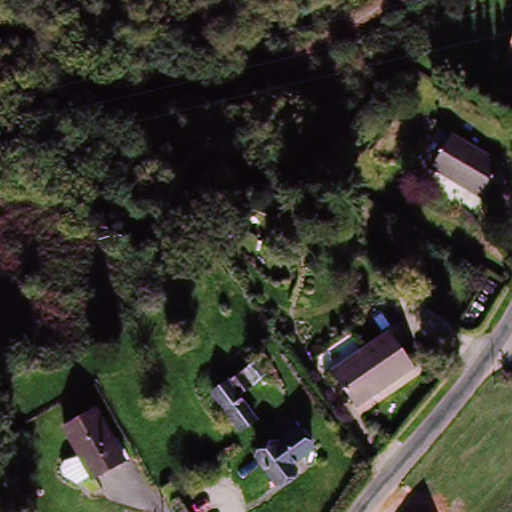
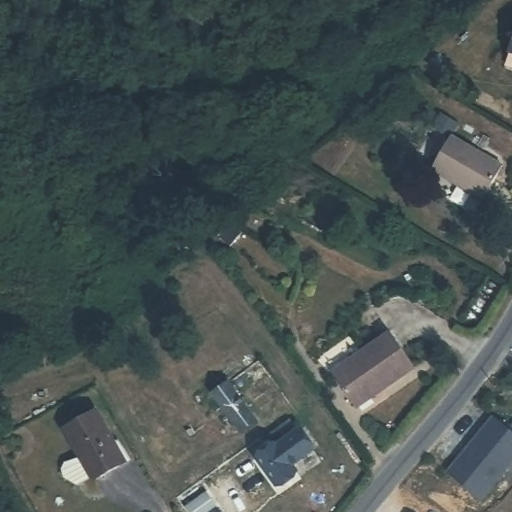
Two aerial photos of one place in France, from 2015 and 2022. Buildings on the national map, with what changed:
unchanged [(507,46),(512,37),(512,50),(507,46)]
unchanged [(500,166),(482,196),(431,164),(449,134),(500,166)]
unchanged [(346,407),(329,380),(391,338),(412,371),(379,393),(350,413),(346,407)]
unchanged [(251,373),(259,385),(244,394),(236,382),(251,373)]
unchanged [(220,394),(244,429),(231,438),(207,403),(220,394)]
unchanged [(100,412),(129,463),(94,482),(93,479),(79,487),(64,481),(63,473),(64,466),(81,460),(65,431),(100,412)]
new [(494,417),(512,431),(512,459),(479,500),(449,474),(494,417)]
unchanged [(301,461),(284,473),(289,480),(268,495),(247,465),(268,451),(258,437),(274,426),(284,440),(286,438),(301,461)]

